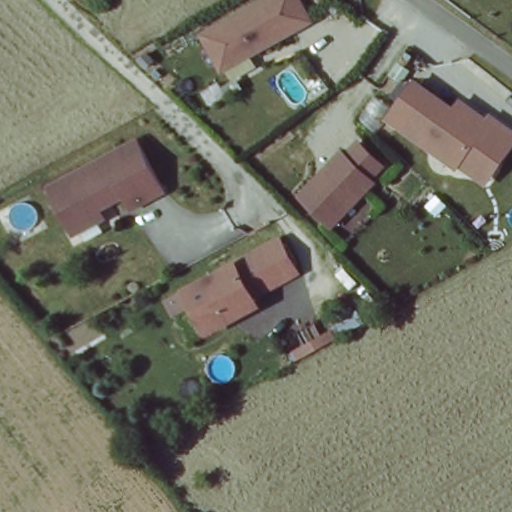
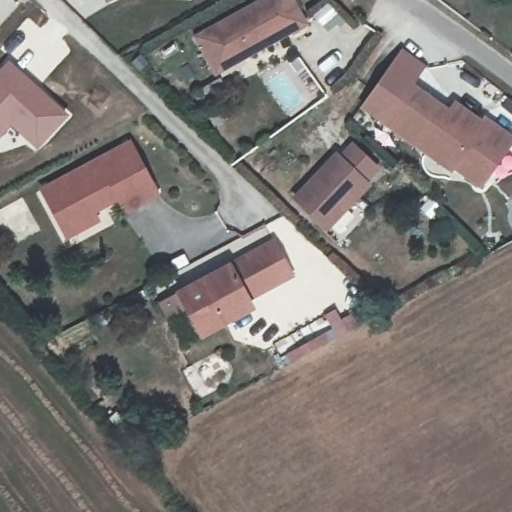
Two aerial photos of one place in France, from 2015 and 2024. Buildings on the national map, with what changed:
new [(106,2),(105,0),(112,0),(106,2)]
unchanged [(204,22),(244,0),(287,0),(296,17),(208,65),(192,37),(188,30),(204,22)]
new [(71,115),(37,151),(11,127),(0,138),(0,68),(8,58),(71,115)]
unchanged [(448,164),(379,117),(404,79),(444,107),(450,98),(471,113),(478,118),(481,114),(509,133),(487,166),(475,183),(448,164)]
unchanged [(71,236),(65,226),(45,189),(133,141),(161,193),(130,210),(123,197),(96,210),(102,219),(71,236)]
unchanged [(332,152),(336,155),(348,142),(373,164),(361,178),(364,181),(324,225),(292,195),(332,152)]
unchanged [(159,304),(178,294),(273,243),(291,277),(246,299),(250,304),(223,318),(226,323),(201,337),(186,310),(168,320),(159,304)]

